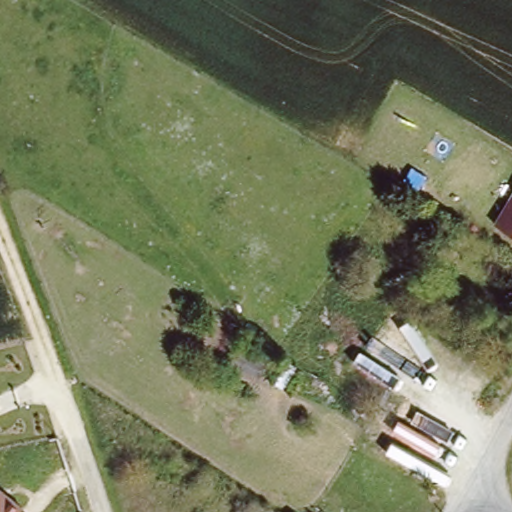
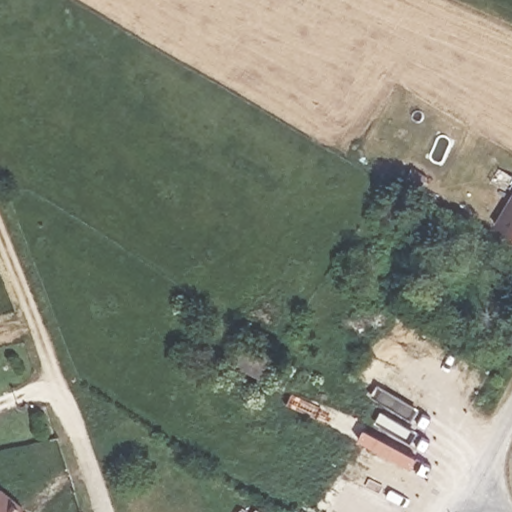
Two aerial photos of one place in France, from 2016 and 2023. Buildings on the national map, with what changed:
unchanged [(512,193),(512,236),(492,224),(512,193)]
unchanged [(21,512),(0,512),(0,494),(21,512)]

